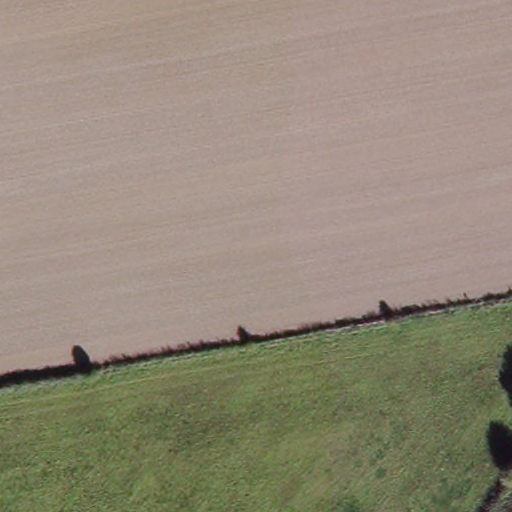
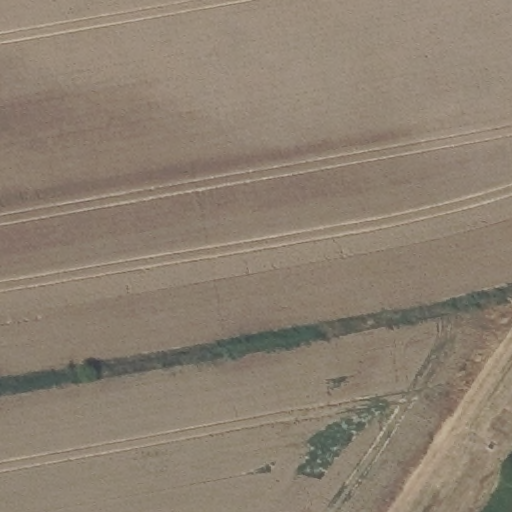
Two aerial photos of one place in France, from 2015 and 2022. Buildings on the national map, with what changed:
[]

